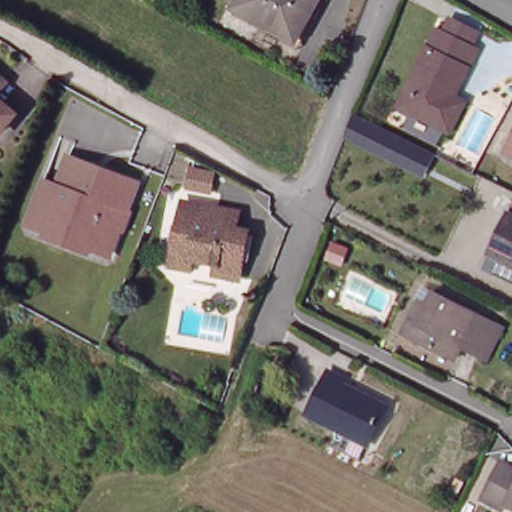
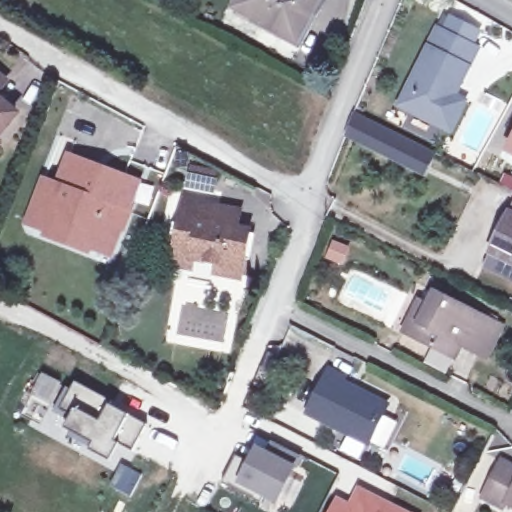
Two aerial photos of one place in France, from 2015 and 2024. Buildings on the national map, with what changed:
unchanged [(310,18),(304,14),(292,37),(239,8),(243,0),(320,0),(310,18)]
unchanged [(461,109),(452,126),(398,101),(435,24),(477,44),(454,92),(467,97),(461,109)]
unchanged [(0,120),(0,105),(7,112),(0,120)]
unchanged [(433,152),(422,174),(345,138),(354,116),(433,152)]
unchanged [(509,149),(512,144),(512,151),(509,149)]
unchanged [(87,164),(84,174),(112,185),(115,176),(136,184),(124,213),(127,214),(119,231),(117,230),(107,255),(87,246),(90,237),(49,220),(45,229),(25,221),(37,191),(42,179),(56,185),(67,156),(87,164)]
unchanged [(207,186),(202,204),(179,199),(182,181),(207,186)]
unchanged [(489,251),(512,208),(512,265),(489,251)]
unchanged [(165,275),(169,258),(182,209),(215,216),(238,221),(233,239),(242,241),(232,285),(212,279),(214,276),(186,269),(184,280),(165,275)]
unchanged [(499,322),(483,354),(460,342),(454,355),(404,329),(416,306),(422,296),(432,302),(438,290),(499,322)]
unchanged [(346,383),(343,388),(385,411),(366,447),(305,415),(327,374),(346,383)]
new [(120,445),(112,461),(92,450),(95,443),(67,428),(74,417),(62,410),(77,384),(148,426),(134,451),(120,445)]
new [(225,484),(238,457),(250,462),(258,447),(269,452),(274,442),(304,458),(299,468),(279,505),(264,497),(262,503),(225,484)]
unchanged [(496,512),(483,512),(475,507),(495,471),(512,482),(512,512),(505,512),(498,508),(496,512)]
new [(351,504),(360,488),(407,512),(331,512),(337,498),(351,504)]

